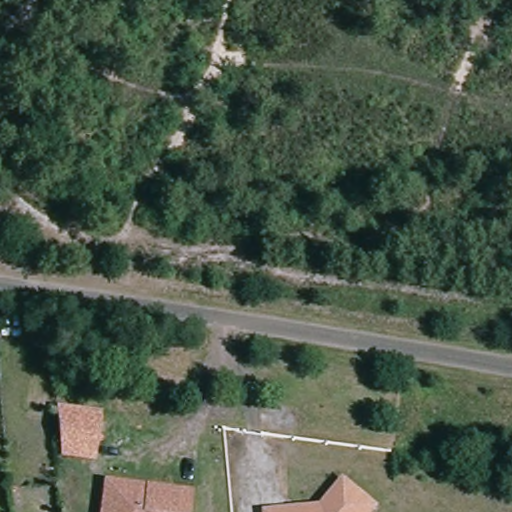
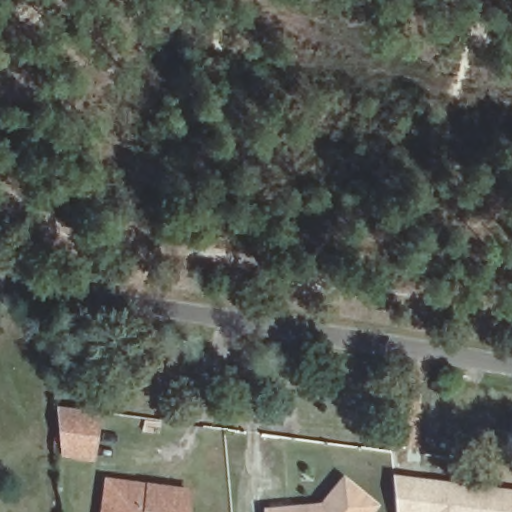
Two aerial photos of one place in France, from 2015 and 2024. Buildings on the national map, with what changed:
unchanged [(60,457),(56,404),(102,410),(95,460),(60,457)]
new [(512,492),(512,512),(396,512),(393,477),(512,492)]
unchanged [(195,490),(192,512),(97,512),(101,478),(195,490)]
unchanged [(318,507),(340,481),(370,507),(366,512),(263,512),(305,508),(318,507)]

